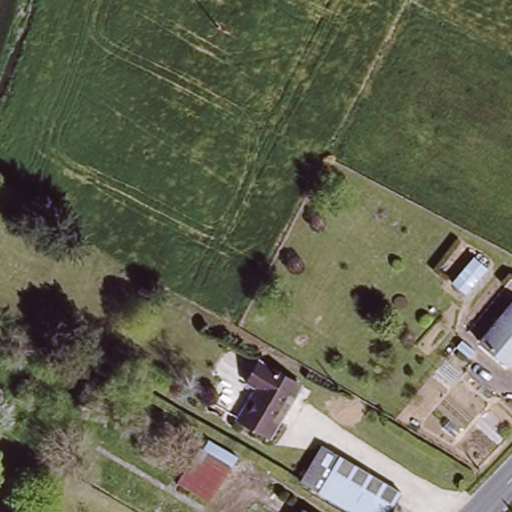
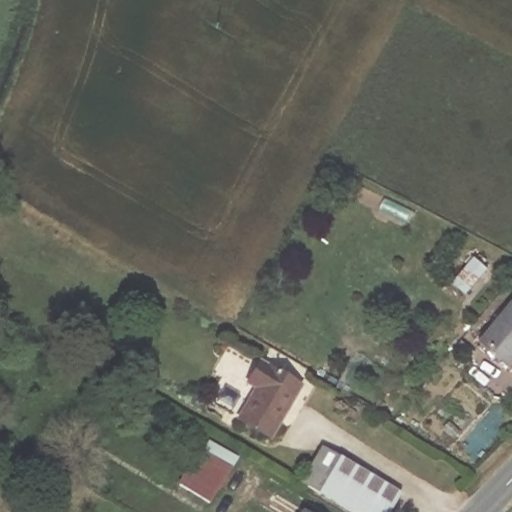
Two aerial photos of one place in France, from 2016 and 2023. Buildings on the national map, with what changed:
unchanged [(476,257),(486,267),(465,292),(453,283),(476,257)]
unchanged [(509,365),(478,339),(510,301),(512,302),(512,361),(509,365)]
unchanged [(474,355),(470,360),(457,349),(462,344),(474,355)]
unchanged [(302,389),(275,437),(244,418),(260,391),(252,386),(264,365),(302,389)]
unchanged [(236,463),(213,496),(184,476),(206,444),(236,463)]
unchanged [(393,512),(355,512),(301,479),(291,473),(302,455),(307,447),(319,452),(323,445),(404,494),(393,512)]
unchanged [(310,512),(304,512),(305,510),(310,512)]

